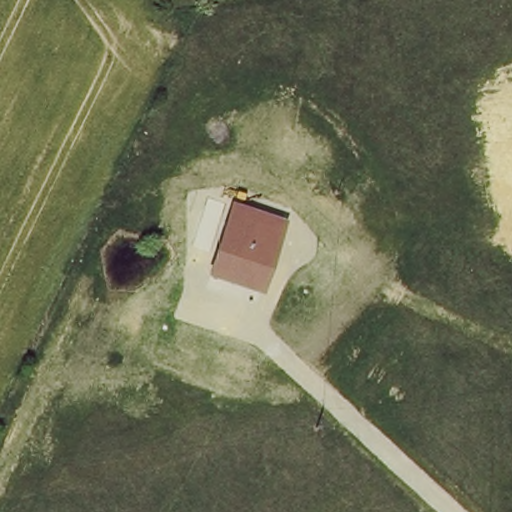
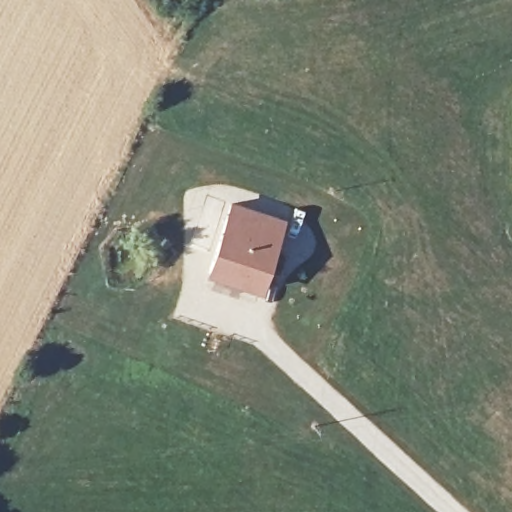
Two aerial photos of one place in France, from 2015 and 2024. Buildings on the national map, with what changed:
unchanged [(280,226),(259,294),(209,278),(230,211),(280,226)]

